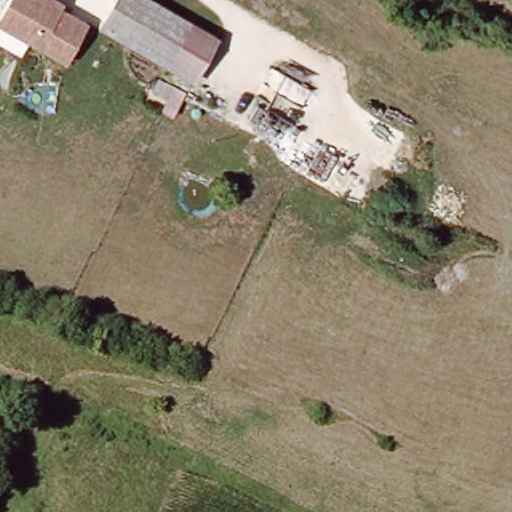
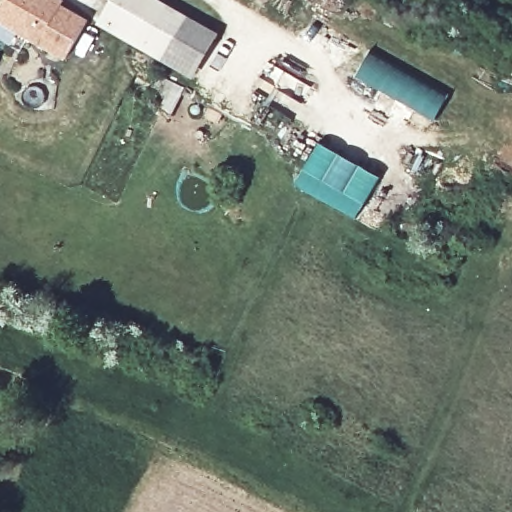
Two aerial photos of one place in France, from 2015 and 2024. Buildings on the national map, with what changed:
unchanged [(92,15),(71,52),(33,32),(27,42),(25,46),(0,32),(0,14),(8,0),(65,0),(92,15)]
unchanged [(102,21),(114,0),(152,0),(191,21),(170,58),(102,21)]
unchanged [(191,21),(217,35),(196,73),(170,58),(191,21)]
new [(372,48),(451,91),(432,124),(353,78),(372,48)]
new [(320,141),(382,176),(356,219),(293,185),(320,141)]

